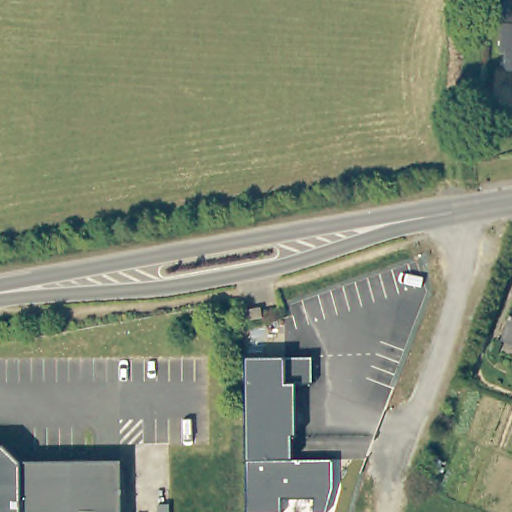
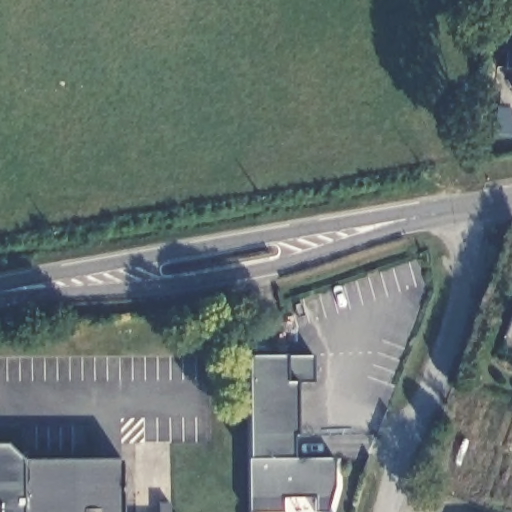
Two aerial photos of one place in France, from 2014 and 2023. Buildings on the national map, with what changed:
unchanged [(511,69),(499,68),(501,50),(495,50),(498,21),(500,0),(506,0),(512,0),(512,92),(509,91),(511,69)]
unchanged [(256,311),(256,322),(237,320),(238,309),(256,311)]
unchanged [(512,315),(512,340),(503,336),(512,315)]
unchanged [(310,357),(311,385),(293,385),(295,435),(290,436),(290,458),(330,459),(331,490),(324,512),(314,512),(314,498),(280,498),(280,512),(247,512),(246,460),(246,358),(283,357),(310,357)]
unchanged [(7,448),(23,464),(124,465),(123,512),(0,512),(0,448),(7,448)]

